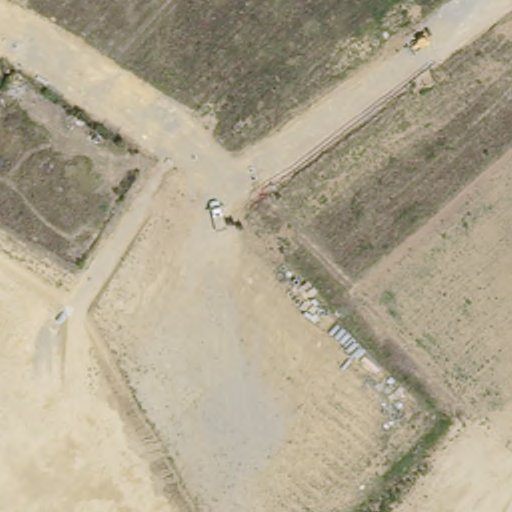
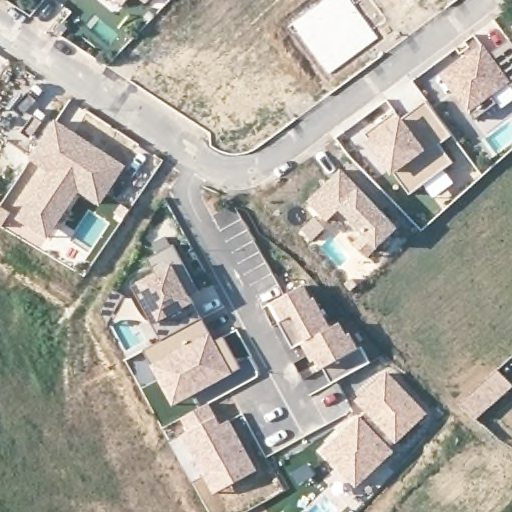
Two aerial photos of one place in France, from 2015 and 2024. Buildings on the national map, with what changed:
new [(125,6),(118,0),(129,0),(125,6)]
new [(146,4),(142,0),(149,0),(146,4)]
new [(512,43),(512,86),(510,83),(493,95),(498,102),(476,117),(473,114),(470,116),(441,75),(483,43),(491,53),(510,40),(512,43)]
new [(396,111),(402,119),(427,101),(452,135),(440,144),(453,162),(411,193),(366,133),(396,111)]
new [(126,165),(101,205),(79,192),(50,239),(17,219),(48,170),(30,159),(55,120),(126,165)]
new [(340,204),(327,215),(310,194),(344,166),(396,227),(375,245),(365,254),(352,239),(363,230),(340,204)]
new [(143,348),(162,337),(133,287),(138,282),(157,272),(148,257),(172,246),(199,291),(188,292),(194,303),(210,332),(204,337),(153,366),(143,348)]
new [(305,284),(331,326),(301,343),(293,347),(268,303),(305,284)]
new [(330,385),(321,371),(301,343),(331,326),(341,320),(360,347),(370,362),(330,385)]
new [(175,405),(153,366),(204,337),(210,346),(222,337),(241,367),(175,405)]
new [(388,370),(428,413),(395,443),(393,441),(390,443),(365,418),(369,416),(355,398),(388,370)]
new [(503,372),(512,383),(512,390),(480,425),(466,410),(503,372)]
new [(222,424),(231,421),(258,470),(216,493),(182,435),(189,431),(182,418),(183,418),(210,403),(222,424)]
new [(360,413),(365,418),(390,443),(395,451),(356,487),(320,449),(360,413)]

